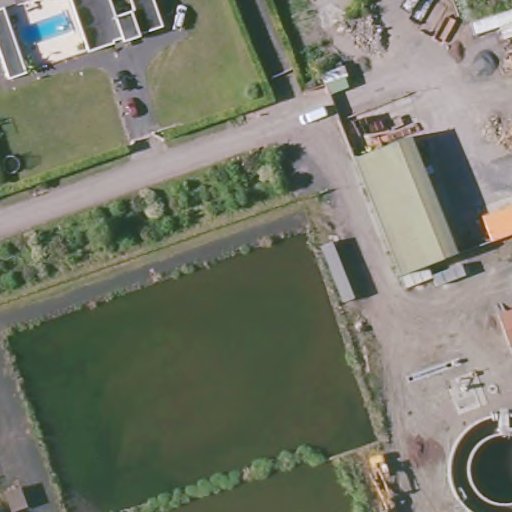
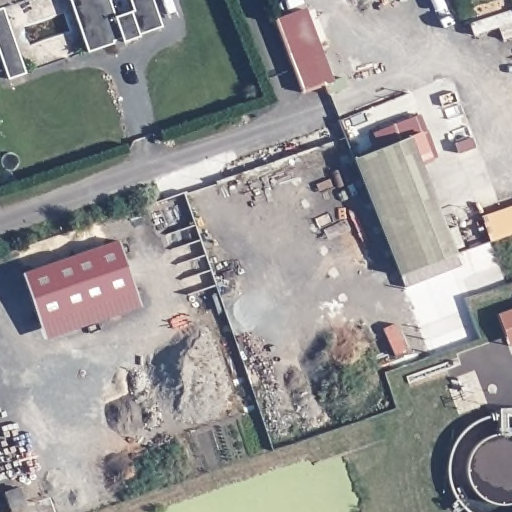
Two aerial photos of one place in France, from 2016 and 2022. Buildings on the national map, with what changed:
unchanged [(142,34),(142,36),(126,42),(125,37),(116,40),(117,43),(92,53),(71,0),(155,0),(165,25),(142,34)]
unchanged [(25,76),(8,82),(0,61),(0,11),(1,11),(25,76)]
unchanged [(412,140),(457,257),(402,278),(357,161),(412,140)]
unchanged [(481,216),(512,207),(512,234),(490,241),(481,216)]
new [(114,240),(132,290),(36,324),(18,274),(114,240)]
new [(132,290),(137,304),(41,338),(36,324),(132,290)]
unchanged [(498,314),(512,310),(512,344),(509,345),(498,314)]
unchanged [(16,486),(24,504),(10,509),(4,491),(16,486)]

